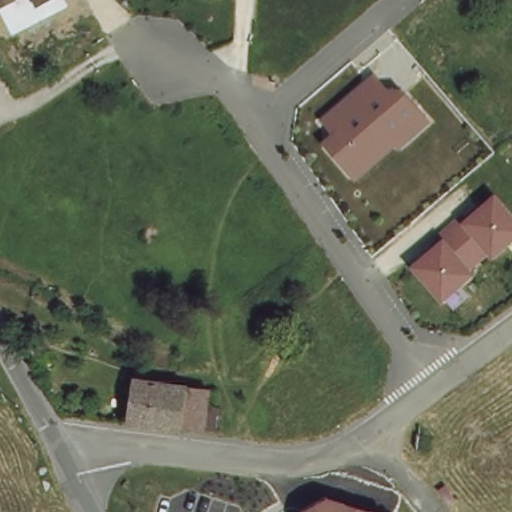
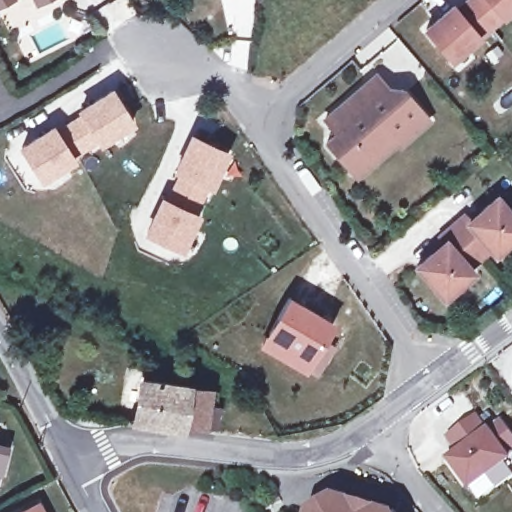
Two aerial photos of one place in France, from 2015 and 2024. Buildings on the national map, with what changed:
unchanged [(0,7),(0,0),(13,0),(0,7)]
unchanged [(37,8),(33,0),(51,0),(37,8)]
new [(428,27),(453,4),(458,10),(468,0),(512,0),(512,8),(452,61),(428,27)]
unchanged [(390,90),(404,86),(433,120),(404,151),(398,146),(359,180),(326,139),(336,130),(324,117),(376,74),(390,90)]
new [(111,86),(136,124),(101,147),(98,142),(73,156),(78,162),(41,185),(18,146),(53,124),(77,109),(111,86)]
new [(191,134),(231,151),(213,190),(208,188),(197,212),(201,215),(183,254),(143,234),(161,196),(166,198),(178,173),(173,171),(191,134)]
unchanged [(512,209),(512,242),(499,254),(474,273),(443,301),(414,266),(448,240),(444,231),(461,214),(467,220),(499,194),(512,209)]
new [(289,294),(334,321),(324,340),(338,348),(319,378),(260,345),(289,294)]
unchanged [(24,329),(39,321),(56,352),(41,360),(24,329)]
unchanged [(206,407),(211,407),(208,429),(195,427),(173,425),(173,428),(129,423),(134,380),(178,385),(199,390),(207,392),(206,407)]
new [(476,415),(487,430),(503,420),(512,433),(512,455),(507,459),(468,487),(449,461),(458,454),(446,437),(476,415)]
new [(2,476),(0,476),(0,442),(9,445),(2,476)]
unchanged [(382,512),(309,512),(310,510),(334,495),(382,512)]
new [(46,512),(32,512),(43,506),(46,512)]

